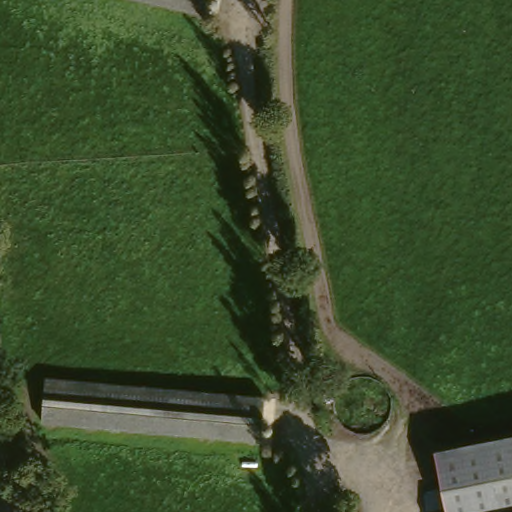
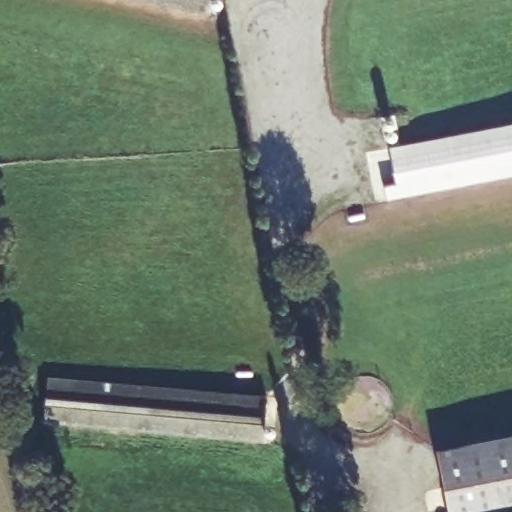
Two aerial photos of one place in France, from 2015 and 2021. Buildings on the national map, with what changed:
unchanged [(213,11),(162,0),(215,0),(213,11)]
new [(389,151),(512,128),(512,175),(386,199),(384,187),(396,185),(389,151)]
unchanged [(268,397),(266,435),(49,418),(53,380),(268,397)]
unchanged [(512,512),(453,512),(441,448),(512,433),(512,512)]

